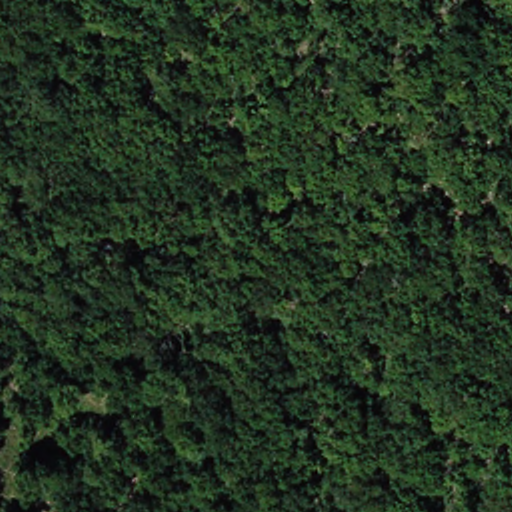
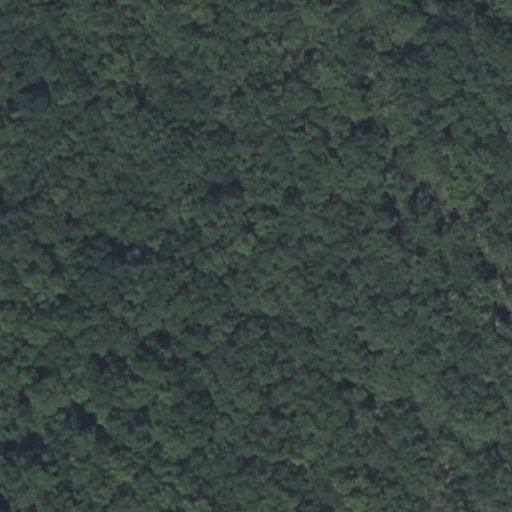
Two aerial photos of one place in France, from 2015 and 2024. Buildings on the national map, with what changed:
[]

